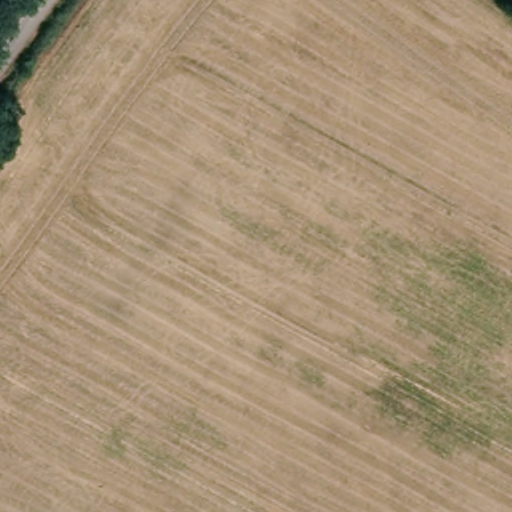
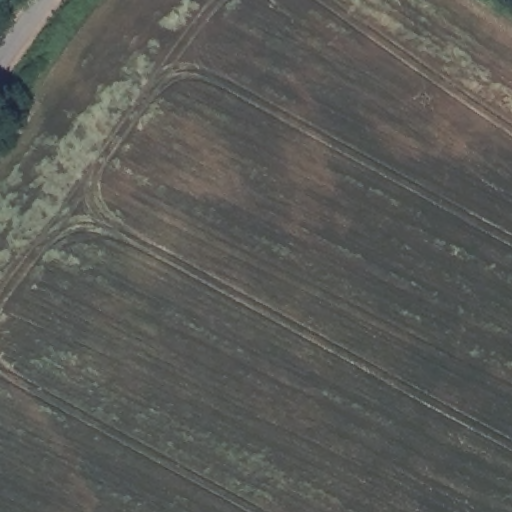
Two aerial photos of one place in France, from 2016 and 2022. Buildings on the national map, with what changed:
[]

